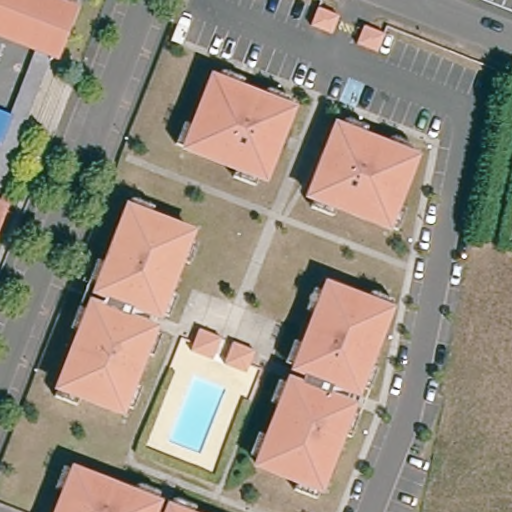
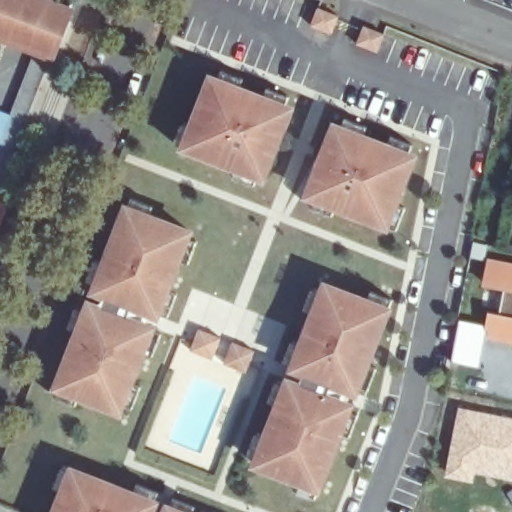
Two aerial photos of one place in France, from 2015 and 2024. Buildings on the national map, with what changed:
unchanged [(0,43),(0,0),(33,0),(31,6),(77,22),(62,67),(51,63),(41,59),(0,43)]
unchanged [(342,14),(335,32),(314,24),(321,6),(342,14)]
unchanged [(388,32),(381,50),(360,42),(367,24),(388,32)]
unchanged [(0,163),(2,158),(0,157),(0,124),(14,128),(41,59),(51,63),(0,195),(0,163)]
unchanged [(230,177),(234,168),(182,148),(172,145),(181,122),(190,126),(209,77),(215,79),(219,70),(241,78),(237,88),(262,97),(265,87),(287,96),(283,105),(289,107),(262,179),(256,177),(252,186),(230,177)]
unchanged [(381,231),(329,211),(326,221),(303,212),(307,203),(301,201),(328,129),(335,131),(338,122),(361,131),(357,140),(381,149),(385,140),(407,148),(403,157),(409,160),(390,209),(399,212),(391,234),(381,231)]
unchanged [(54,386),(75,330),(66,326),(75,304),(84,308),(91,310),(93,303),(97,305),(102,293),(97,292),(100,285),(94,283),(85,279),(93,257),(102,260),(124,204),(127,195),(150,203),(147,212),(187,228),(185,235),(194,238),(186,260),(177,257),(165,288),(174,292),(165,314),(156,310),(155,313),(147,310),(142,322),(150,325),(149,328),(158,332),(150,354),(141,350),(129,381),(137,385),(129,407),(120,404),(117,410),(76,395),(72,404),(50,396),(54,386)]
unchanged [(0,237),(0,212),(9,215),(0,237)]
unchanged [(300,478),(259,462),(262,455),(252,452),(261,429),(270,433),(282,402),(272,399),(282,376),(291,380),(292,377),(302,381),(307,369),(297,365),(297,362),(288,358),(297,335),(306,338),(318,309),(309,305),(317,283),(327,286),(368,303),(372,293),(394,302),(391,311),(371,360),(381,364),(372,386),(362,382),(356,380),(347,405),(353,407),(362,411),(353,433),(344,430),(322,486),(318,496),(297,487),(300,478)]
new [(486,324),(488,310),(512,314),(512,344),(484,338),(486,324)]
new [(459,318),(486,324),(484,338),(477,367),(450,360),(459,318)]
unchanged [(223,340),(215,361),(192,353),(201,331),(223,340)]
unchanged [(257,352),(249,374),(227,366),(235,344),(257,352)]
new [(458,405),(512,417),(512,479),(475,473),(473,482),(443,476),(458,405)]
unchanged [(51,487),(60,465),(69,469),(130,492),(134,483),(156,491),(152,501),(154,501),(151,510),(156,512),(52,512),(60,491),(51,487)]
unchanged [(170,497),(192,505),(190,512),(163,512),(165,505),(170,497)]

